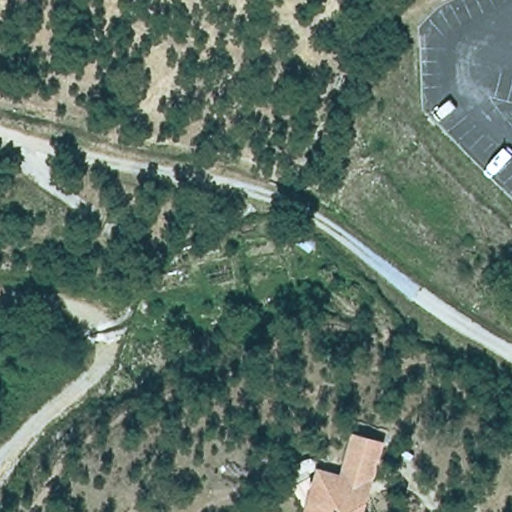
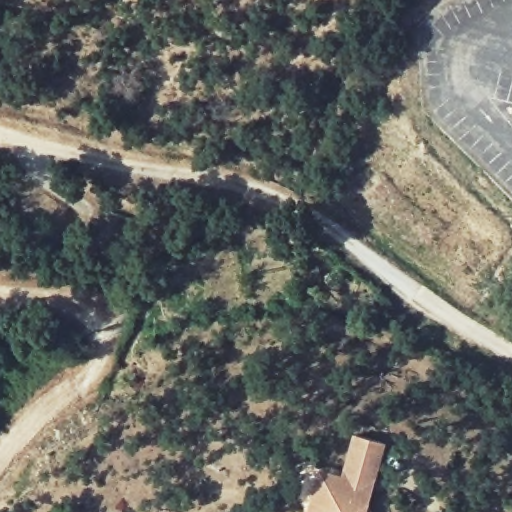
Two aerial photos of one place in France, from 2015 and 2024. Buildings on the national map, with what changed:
unchanged [(318,476),(338,481),(348,442),(380,451),(366,512),(309,512),(318,476)]

